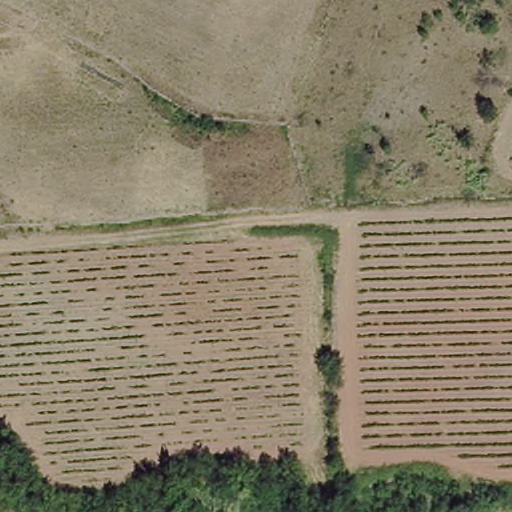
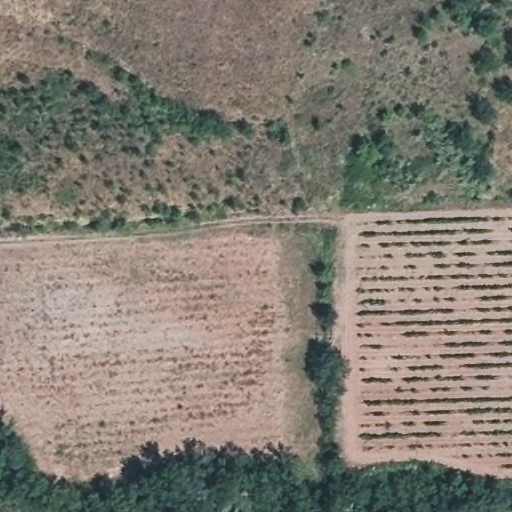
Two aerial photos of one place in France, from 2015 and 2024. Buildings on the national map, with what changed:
[]

